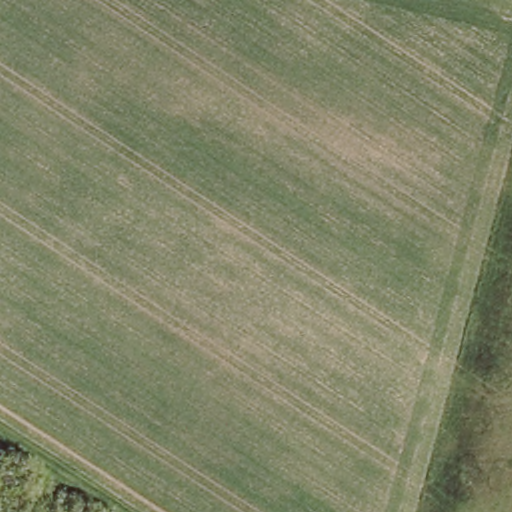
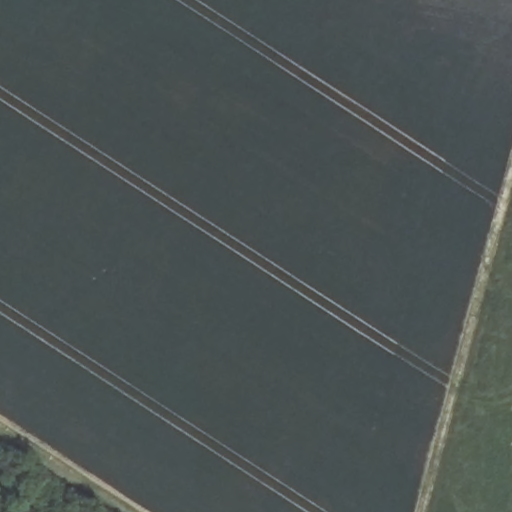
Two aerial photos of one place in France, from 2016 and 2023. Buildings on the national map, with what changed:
[]

